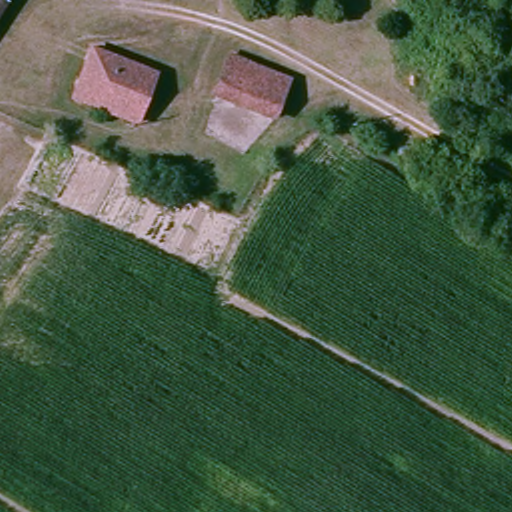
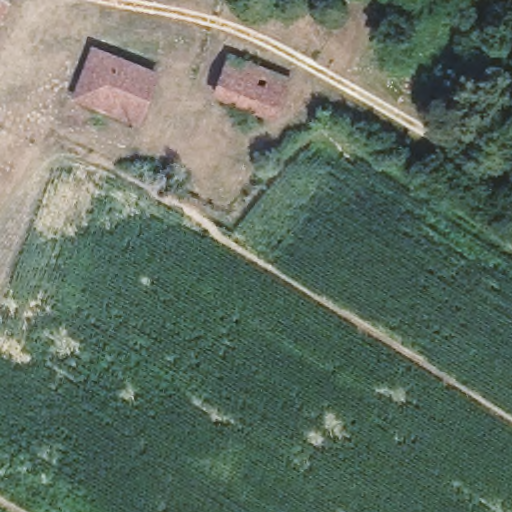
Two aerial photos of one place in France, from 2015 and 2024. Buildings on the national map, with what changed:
unchanged [(0,0),(11,0),(12,1),(0,19),(0,0)]
unchanged [(271,117),(221,96),(238,50),(288,70),(271,117)]
unchanged [(133,117),(81,94),(101,51),(151,73),(133,117)]

